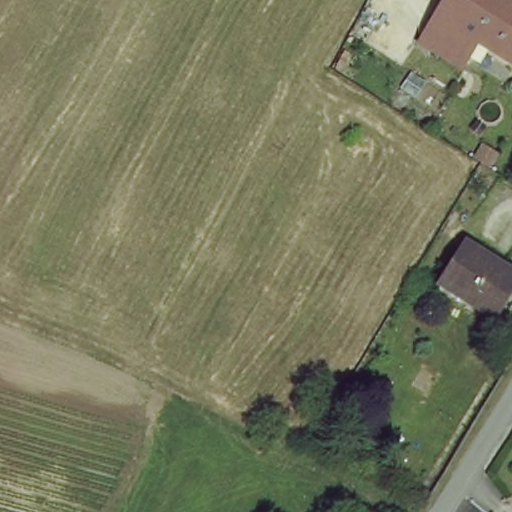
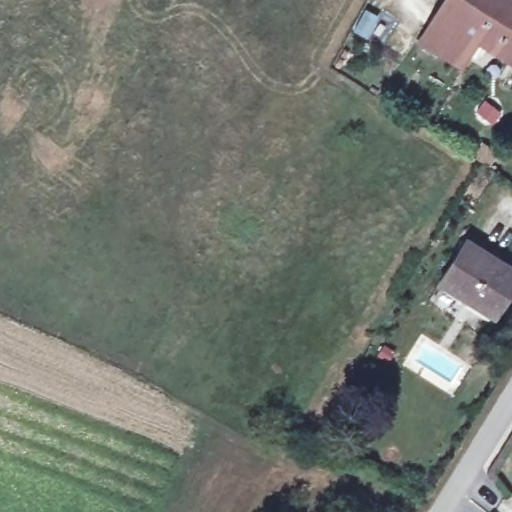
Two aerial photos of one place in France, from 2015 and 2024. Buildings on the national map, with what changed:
unchanged [(423,46),(442,13),(449,0),(512,0),(512,52),(480,36),(465,60),(461,67),(423,46)]
unchanged [(460,295),(458,299),(431,283),(457,240),(511,273),(489,311),(460,295)]

